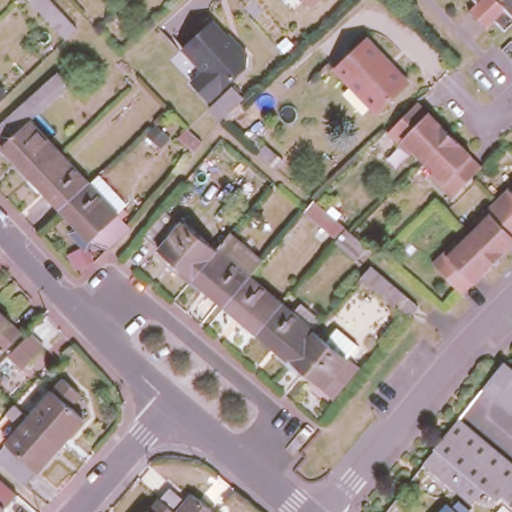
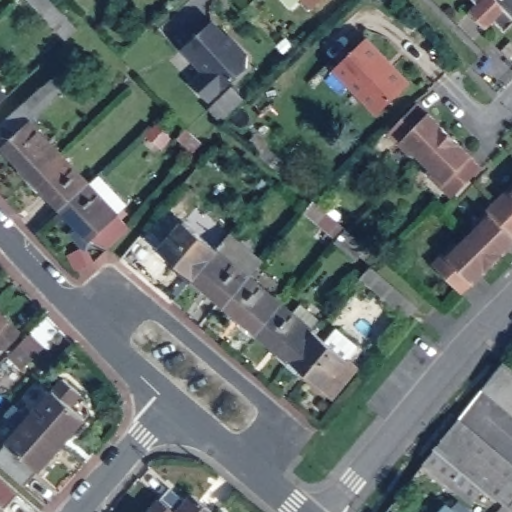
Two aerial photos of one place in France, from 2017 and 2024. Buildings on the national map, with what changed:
unchanged [(45,0),(71,27),(59,38),(25,0),(45,0)]
unchanged [(323,0),(312,10),(302,0),(323,0)]
unchanged [(511,10),(512,12),(512,15),(500,27),(490,16),(481,25),(465,7),(472,0),(512,0),(512,10),(511,10)]
unchanged [(190,83),(202,72),(180,50),(215,21),(229,35),(230,35),(248,53),(247,67),(222,91),(209,103),(190,83)]
unchanged [(364,41),(381,60),(389,69),(405,85),(374,115),(332,72),(364,41)]
unchanged [(20,165),(1,145),(0,144),(0,120),(16,105),(52,69),(65,82),(27,119),(57,150),(87,182),(59,209),(40,187),(35,192),(25,181),(14,170),(20,165)]
unchanged [(209,105),(232,84),(244,96),(221,117),(209,105)]
unchanged [(475,165),(446,195),(424,172),(427,168),(409,147),(405,150),(384,128),(414,100),(475,165)]
unchanged [(187,149),(174,134),(184,125),(198,140),(187,149)]
unchanged [(260,140),(280,157),(272,165),(252,149),(260,140)]
unchanged [(87,240),(83,244),(72,232),(77,228),(59,209),(87,182),(97,172),(126,204),(116,214),(127,227),(106,245),(104,247),(87,240)]
unchanged [(461,294),(432,265),(455,241),(459,245),(478,225),(475,221),(512,185),(512,244),(461,294)]
unchanged [(220,303),(198,285),(192,293),(181,283),(169,273),(175,266),(155,248),(156,247),(140,235),(162,210),(176,222),(179,218),(211,246),(225,230),(257,259),(245,275),(278,302),(254,331),(220,303)]
unchanged [(353,256),(332,239),(334,236),(342,226),(363,244),(355,254),(353,256)]
unchanged [(81,250),(86,262),(74,268),(68,255),(81,250)]
unchanged [(409,321),(361,281),(371,268),(419,308),(409,321)]
unchanged [(267,356),(274,349),(254,331),(278,302),(290,312),(297,303),(317,320),(310,330),(322,340),(332,327),(354,345),(343,358),(355,368),(330,396),(297,368),(290,376),(279,366),(267,356)]
unchanged [(0,352),(0,313),(20,332),(0,352)]
unchanged [(482,385),(505,356),(512,363),(512,411),(482,385)]
unchanged [(20,425),(5,408),(15,400),(28,415),(52,388),(62,376),(79,391),(68,403),(82,415),(59,443),(37,468),(22,483),(0,463),(0,446),(5,440),(20,425)]
unchanged [(512,464),(512,500),(509,503),(487,487),(467,507),(415,465),(456,415),(512,464)]
unchanged [(179,476),(194,490),(201,482),(226,505),(220,512),(147,512),(179,476)]
unchanged [(509,503),(512,500),(512,506),(509,503)]
unchanged [(0,511),(0,504),(4,507),(0,511)]
unchanged [(446,506),(452,512),(440,512),(446,506)]

